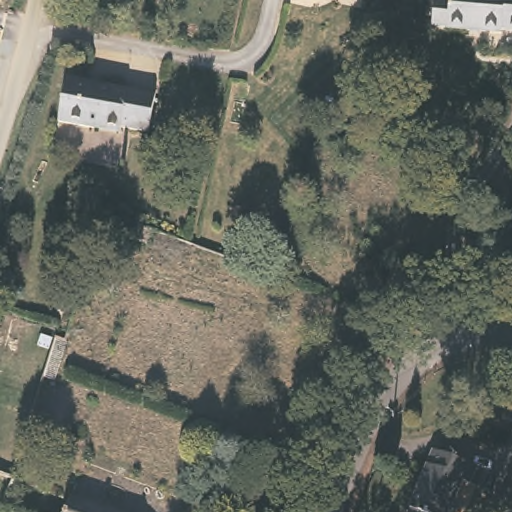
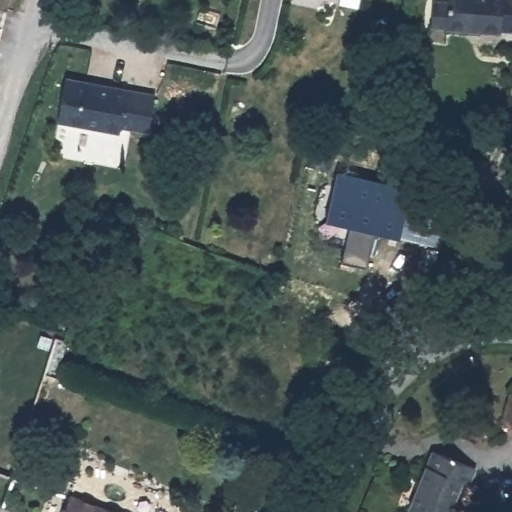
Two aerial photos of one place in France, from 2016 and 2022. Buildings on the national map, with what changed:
unchanged [(431,26),(431,16),(432,1),(447,2),(448,0),(512,0),(512,29),(501,28),(501,31),(480,30),(480,28),(468,27),(468,29),(446,28),(446,27),(432,26),(431,26)]
unchanged [(161,91),(154,130),(126,126),(125,130),(63,119),(71,75),(161,91)]
new [(353,225),(326,219),(337,170),(410,186),(400,237),(378,232),(367,267),(341,261),(353,225)]
unchanged [(152,228),(147,242),(111,229),(115,215),(152,228)]
unchanged [(60,335),(56,347),(44,344),(46,332),(60,335)]
unchanged [(0,381),(0,367),(3,367),(0,381)]
unchanged [(512,392),(512,421),(503,420),(506,391),(512,392)]
unchanged [(475,467),(469,482),(460,480),(448,512),(419,512),(405,506),(430,448),(475,467)]
unchanged [(292,475),(321,491),(310,512),(271,512),(292,475)]
unchanged [(119,512),(65,512),(71,495),(119,512)]

